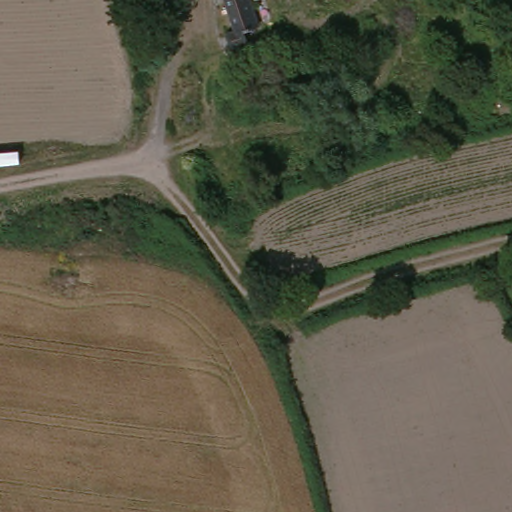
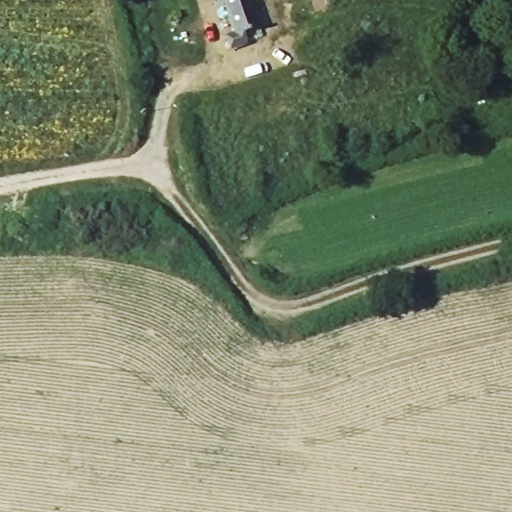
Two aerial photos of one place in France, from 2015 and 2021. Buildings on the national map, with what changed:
unchanged [(220,40),(235,35),(222,0),(245,0),(256,27),(238,34),(243,45),(225,51),(220,40)]

